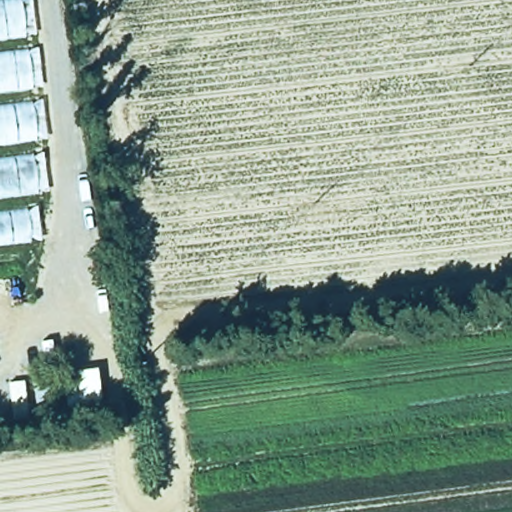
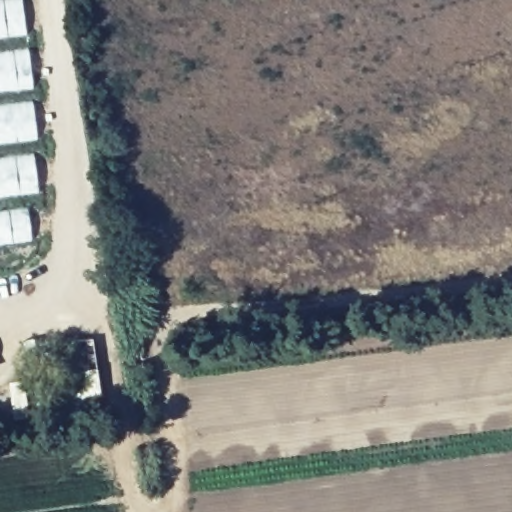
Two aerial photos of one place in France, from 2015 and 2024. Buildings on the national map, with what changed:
unchanged [(35,193),(41,240),(0,245),(0,0),(26,0),(49,191),(35,193)]

